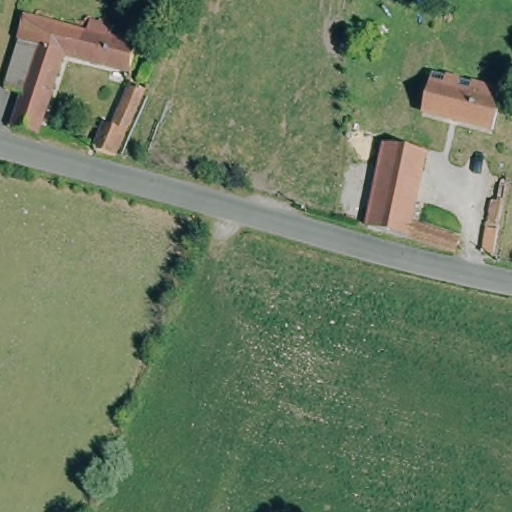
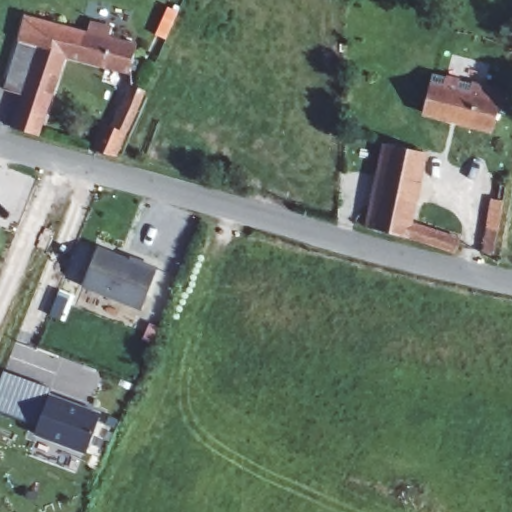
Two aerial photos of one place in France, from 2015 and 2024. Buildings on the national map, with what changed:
unchanged [(8,128),(20,89),(4,82),(15,43),(21,21),(51,29),(92,40),(94,32),(107,35),(105,39),(106,40),(115,42),(113,46),(131,50),(122,76),(58,57),(33,135),(8,128)]
unchanged [(509,92),(500,130),(432,114),(440,75),(509,92)]
unchanged [(94,151),(98,139),(102,127),(110,131),(133,89),(145,94),(114,156),(94,151)]
unchanged [(455,245),(455,250),(405,236),(403,238),(365,226),(390,146),(392,143),(423,151),(428,152),(408,221),(458,237),(455,245)]
new [(0,237),(0,222),(6,225),(0,237)]
new [(487,227),(495,229),(490,254),(482,252),(487,227)]
new [(90,279),(107,242),(137,256),(138,254),(166,265),(149,305),(90,279)]
new [(0,402),(0,388),(11,362),(57,381),(53,388),(41,419),(0,402)]
new [(53,388),(105,409),(89,447),(38,426),(53,388)]

